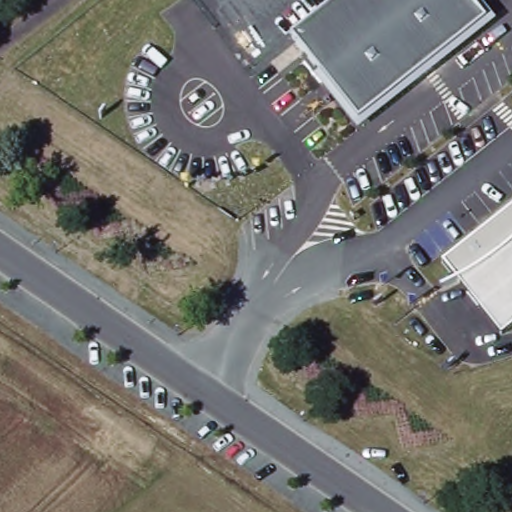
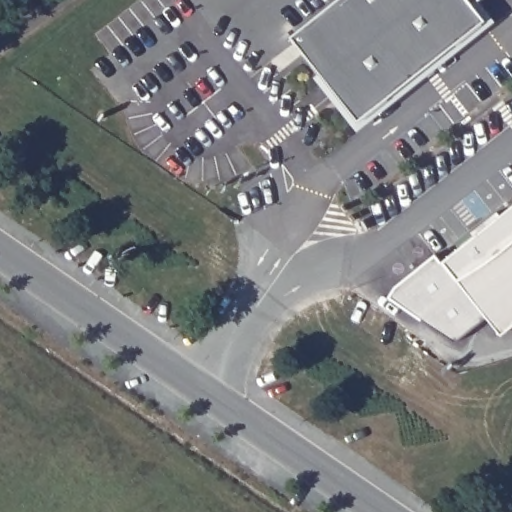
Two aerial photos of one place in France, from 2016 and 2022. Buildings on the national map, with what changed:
unchanged [(496,20),(358,129),(315,75),(321,70),(290,33),(334,0),(483,0),(496,20)]
new [(388,296),(394,285),(436,254),(441,260),(512,203),(512,238),(503,247),(454,280),(484,316),(457,340),(388,296)]
unchanged [(454,280),(503,247),(512,238),(512,328),(501,337),(454,280)]

